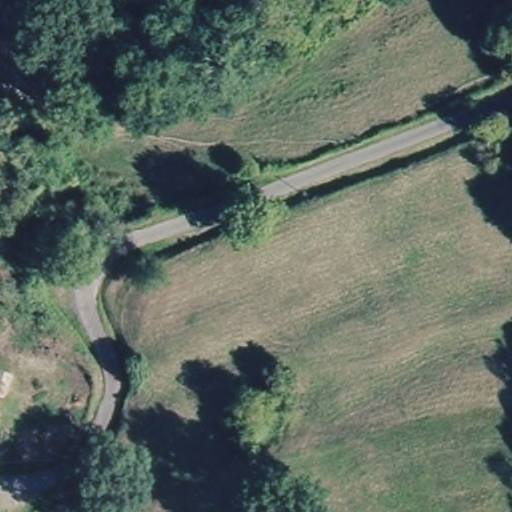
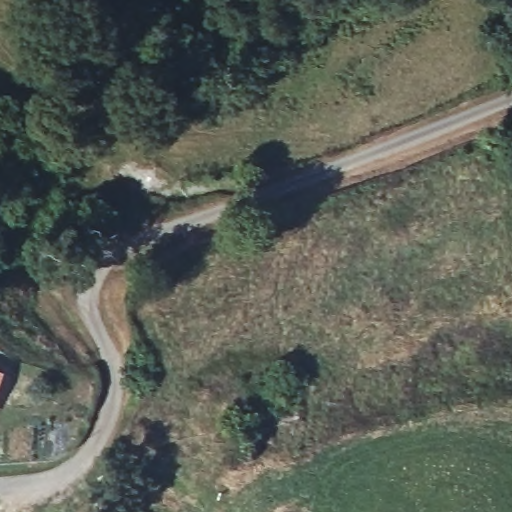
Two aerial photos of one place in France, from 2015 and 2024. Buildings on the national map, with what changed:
unchanged [(14,380),(5,403),(0,400),(0,374),(14,380)]

